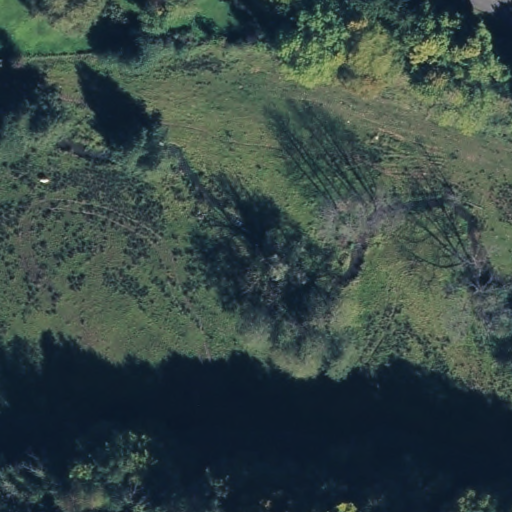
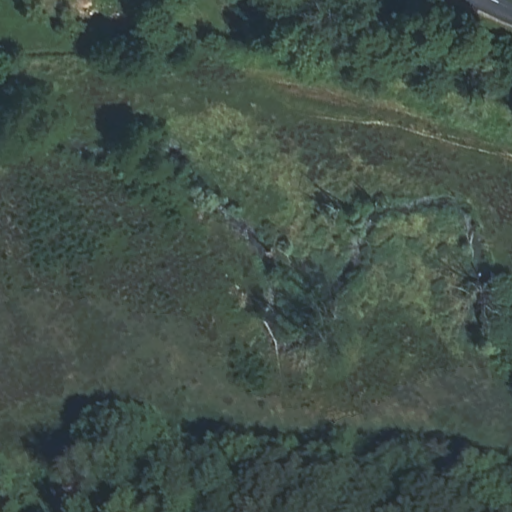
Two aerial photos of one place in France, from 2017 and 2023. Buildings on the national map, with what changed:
[]

